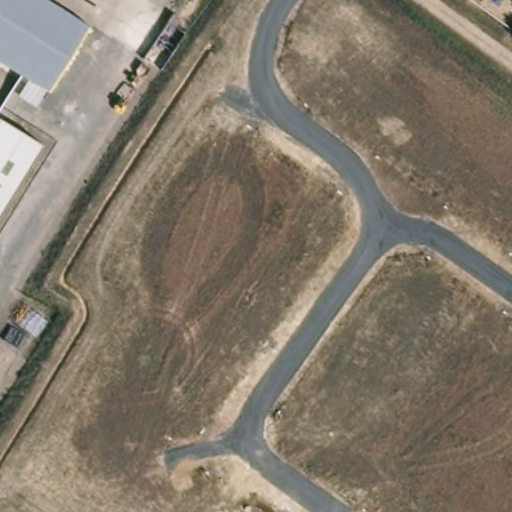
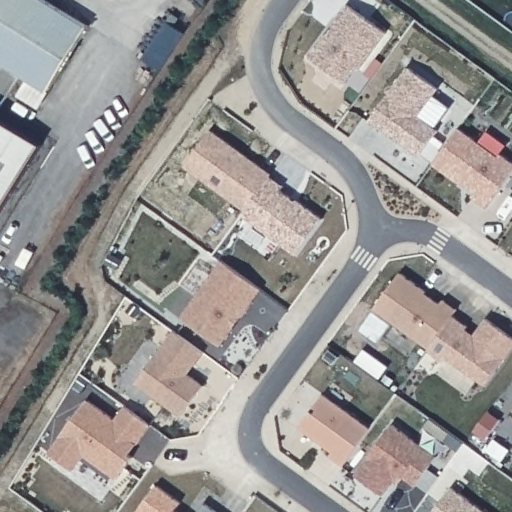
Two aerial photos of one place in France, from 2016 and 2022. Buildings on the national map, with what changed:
unchanged [(0,0),(37,0),(87,31),(47,95),(0,66),(0,0)]
unchanged [(115,2),(113,0),(116,0),(115,2)]
new [(335,33),(336,34),(347,18),(346,17),(357,2),(396,31),(369,67),(366,65),(355,80),(318,55),(335,33)]
new [(418,65),(448,86),(429,114),(448,128),(430,154),(410,139),(412,136),(396,125),(393,129),(379,119),(418,65)]
unchanged [(0,211),(0,120),(41,144),(0,211)]
new [(469,125),(509,155),(512,152),(512,185),(497,205),(482,194),(486,190),(470,179),(468,180),(443,161),(469,125)]
new [(214,130),(274,173),(272,175),(248,209),(188,165),(214,130)]
new [(248,209),(272,175),(287,185),(283,190),(298,201),(300,199),(325,218),(299,254),(245,214),(248,209)]
new [(225,260),(265,289),(244,317),(242,315),(234,327),(236,328),(224,346),(184,317),(225,260)]
new [(403,272),(430,291),(428,292),(444,303),(447,299),(461,309),(456,315),(432,348),(377,308),(403,272)]
new [(432,348),(456,315),(472,326),(468,331),(477,337),(490,318),(512,334),(512,354),(490,385),(450,356),(447,361),(431,350),(432,348)]
new [(214,351),(204,365),(197,373),(214,384),(191,415),(146,382),(184,329),(214,351)]
new [(333,393),(381,427),(353,464),(340,454),(343,450),(310,426),(333,393)]
new [(142,455),(126,477),(92,453),(81,468),(57,451),(97,398),(125,418),(135,405),(160,423),(146,443),(138,453),(142,455)]
new [(402,423),(447,455),(426,484),(412,475),(408,482),(404,479),(393,493),(366,473),(402,423)]
new [(190,501),(185,508),(190,512),(150,512),(147,510),(166,483),(190,501)]
new [(488,512),(437,512),(455,488),(488,512)]
new [(229,512),(206,512),(214,501),(229,512)]

